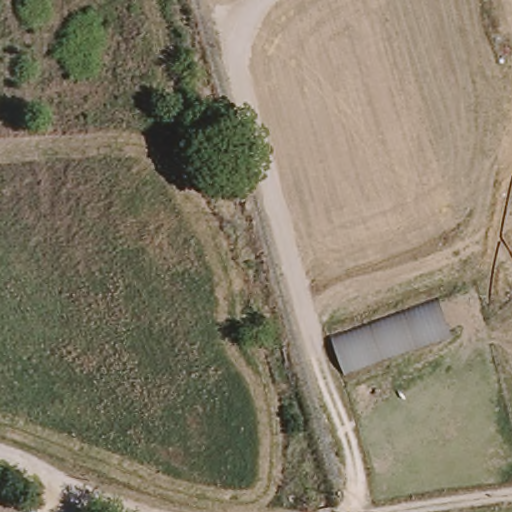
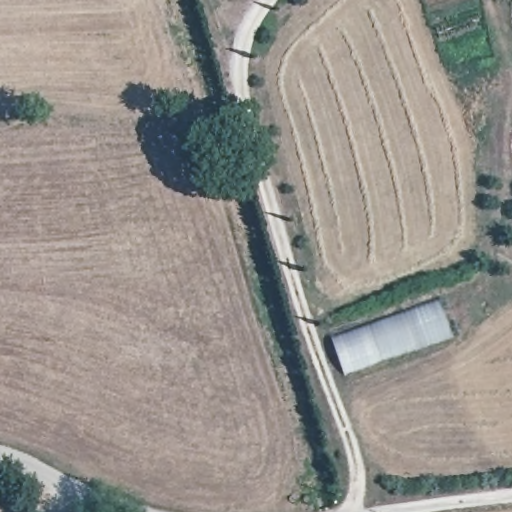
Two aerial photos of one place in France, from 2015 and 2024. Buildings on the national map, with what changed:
unchanged [(332,342),(441,304),(450,333),(342,370),(332,342)]

